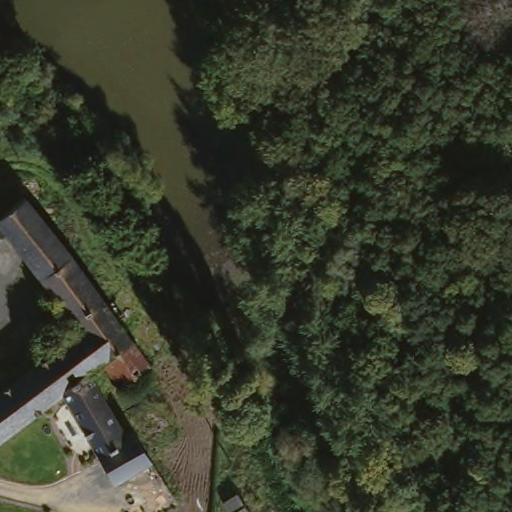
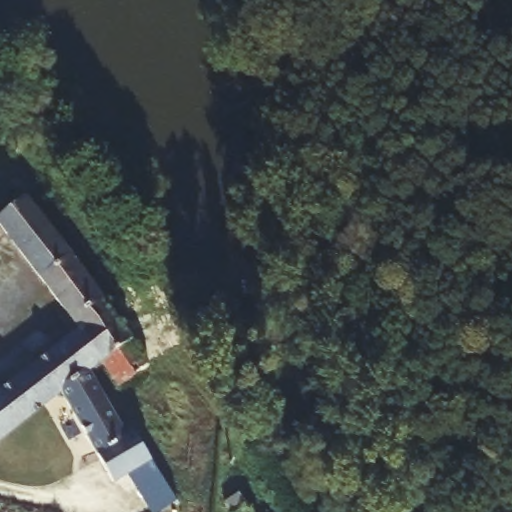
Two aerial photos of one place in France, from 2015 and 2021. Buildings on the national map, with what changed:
unchanged [(14,198),(83,289),(53,311),(0,241),(0,208),(5,205),(14,198)]
unchanged [(53,311),(83,289),(133,357),(105,377),(90,359),(66,328),(53,311)]
unchanged [(90,359),(78,369),(118,436),(127,430),(173,503),(165,508),(159,501),(154,503),(129,464),(106,476),(53,391),(0,441),(0,387),(66,328),(90,359)]
unchanged [(252,499),(235,512),(233,512),(211,486),(230,471),(252,499)]

